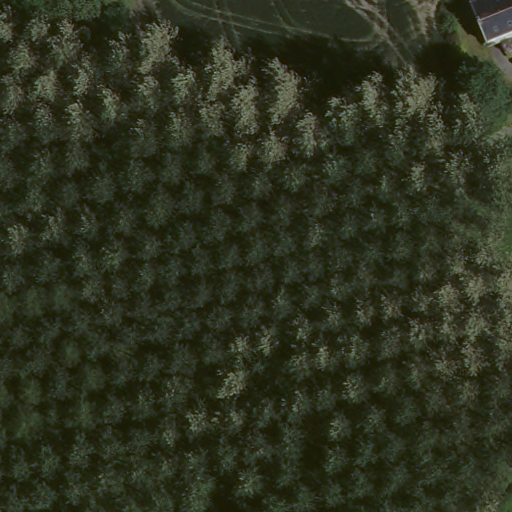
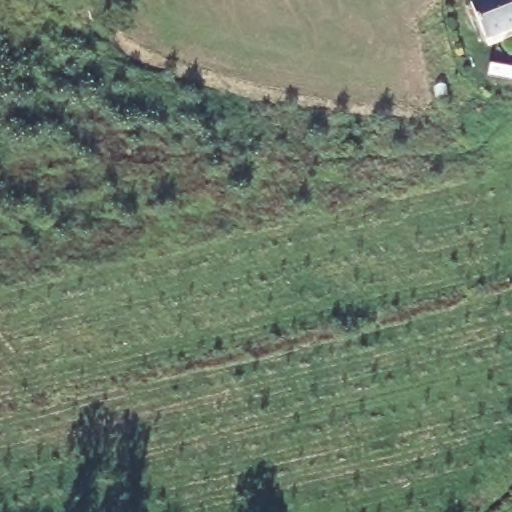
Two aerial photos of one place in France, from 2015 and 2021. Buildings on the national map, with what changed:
unchanged [(512,0),(512,33),(483,43),(469,3),(476,0),(512,0)]

